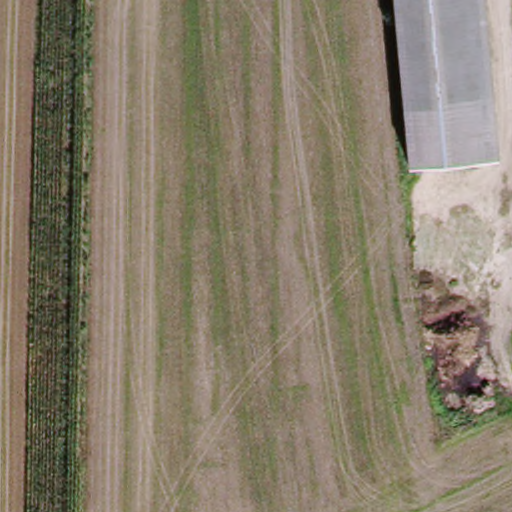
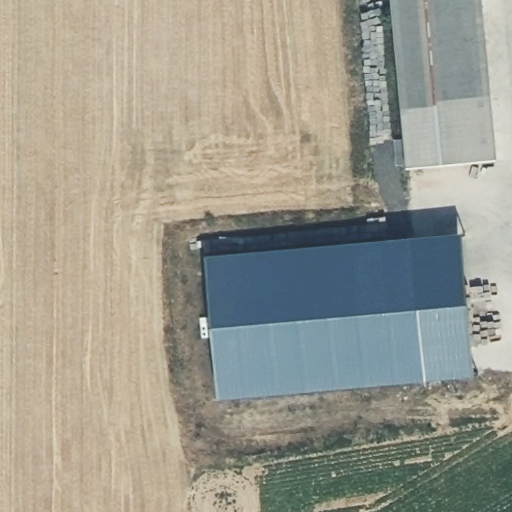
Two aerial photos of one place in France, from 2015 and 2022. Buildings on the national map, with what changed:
unchanged [(498,161),(402,172),(389,0),(485,0),(498,161)]
new [(423,248),(473,244),(487,385),(437,390),(423,248)]
new [(216,267),(423,248),(437,390),(228,408),(216,267)]

